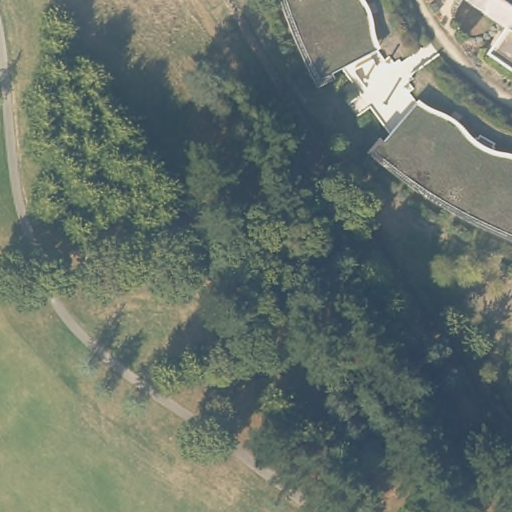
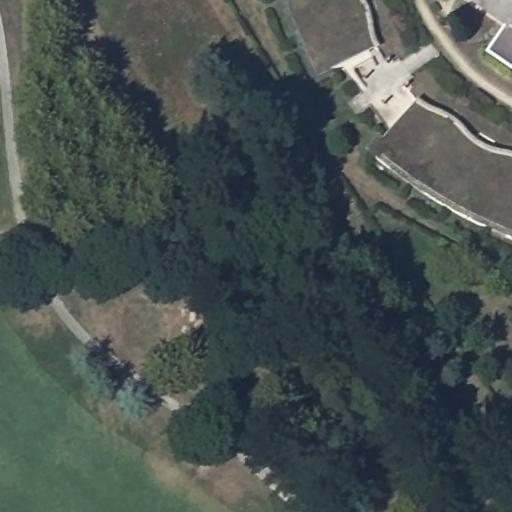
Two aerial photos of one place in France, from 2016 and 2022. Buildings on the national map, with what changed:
unchanged [(407,39),(325,67),(316,72),(292,80),(267,22),(259,0),(386,0),(400,30),(407,39)]
unchanged [(488,50),(504,26),(469,0),(512,0),(512,65),(488,50)]
unchanged [(441,95),(476,118),(502,134),(512,139),(512,268),(445,238),(421,221),(391,197),(364,179),(381,149),(426,74),(441,95)]

